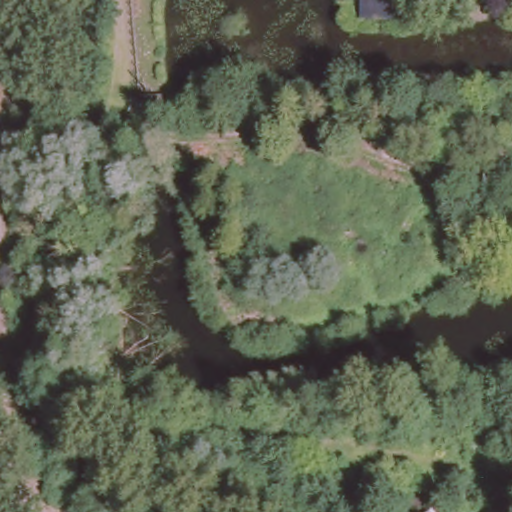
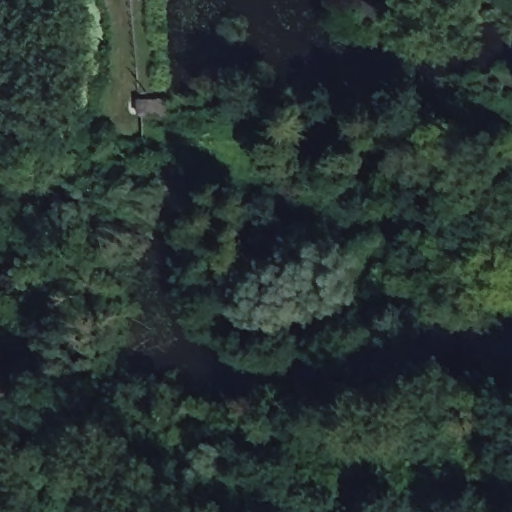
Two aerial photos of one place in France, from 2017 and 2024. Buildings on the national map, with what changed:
unchanged [(157,110),(155,93),(182,92),(184,108),(157,110)]

